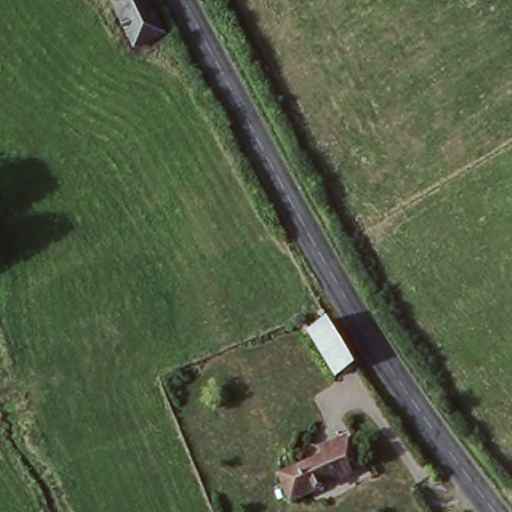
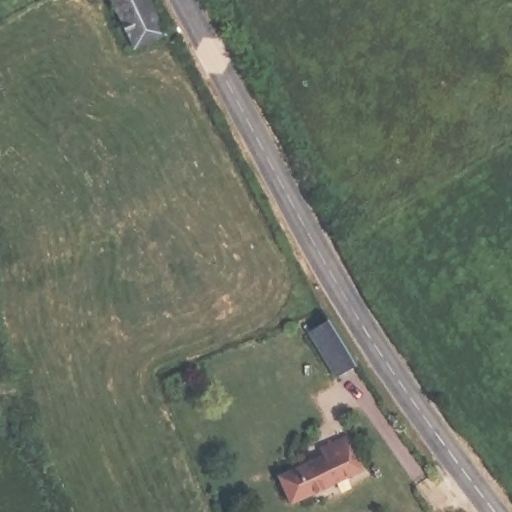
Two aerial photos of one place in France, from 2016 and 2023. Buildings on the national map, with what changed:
unchanged [(138,47),(117,0),(144,0),(161,36),(138,47)]
unchanged [(333,377),(311,329),(331,318),(360,363),(333,377)]
unchanged [(364,472),(294,503),(283,477),(333,455),(330,445),(348,437),(364,472)]

